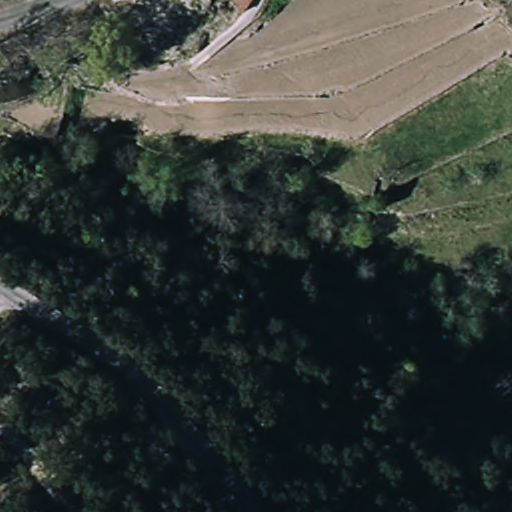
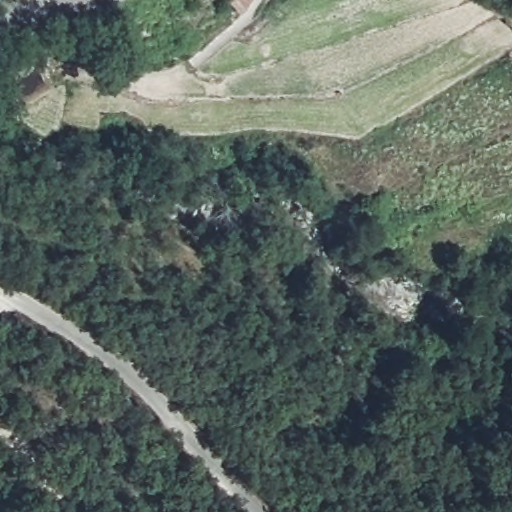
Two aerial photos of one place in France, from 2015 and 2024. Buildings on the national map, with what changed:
unchanged [(231,1),(232,0),(252,0),(242,11),(231,1)]

